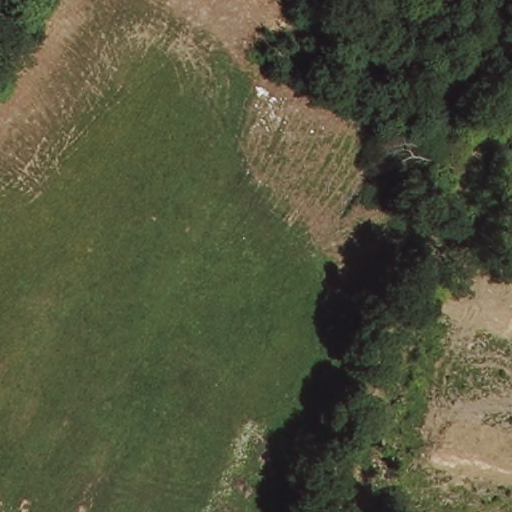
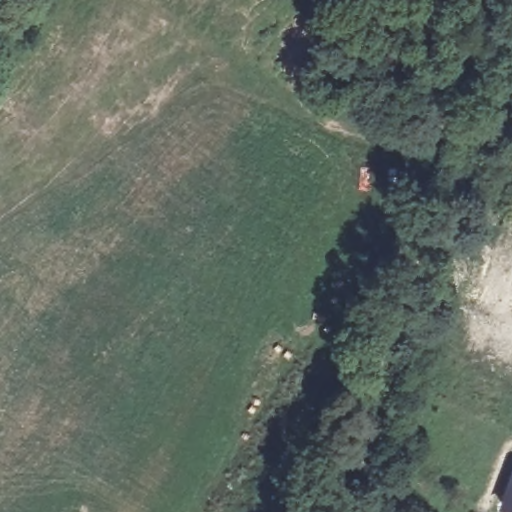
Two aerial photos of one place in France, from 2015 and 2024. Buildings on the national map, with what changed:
new [(512,512),(505,512),(498,510),(512,472),(512,512)]

